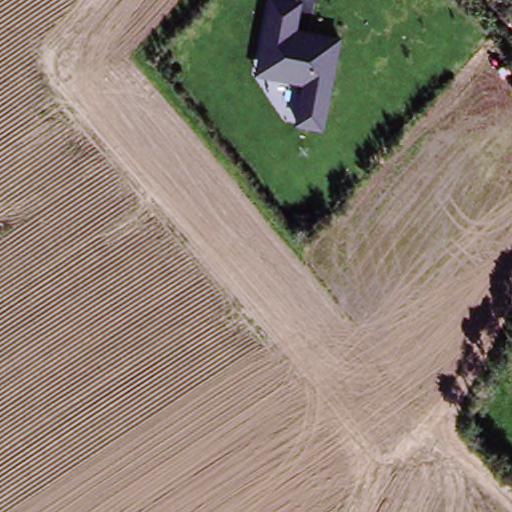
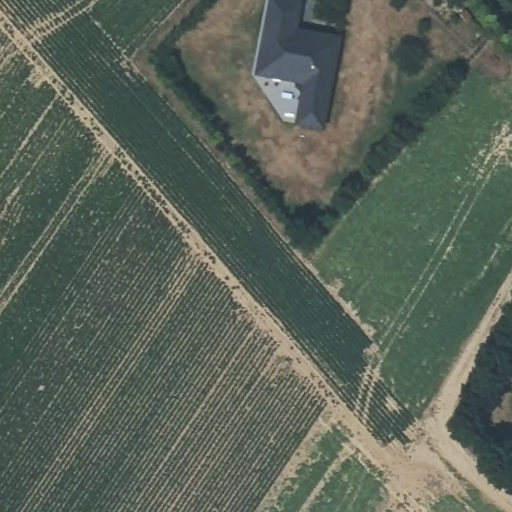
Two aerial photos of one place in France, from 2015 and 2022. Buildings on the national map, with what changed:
unchanged [(326,130),(295,125),(302,85),(254,78),(267,0),(295,0),(303,1),(299,29),(342,38),(326,130)]

